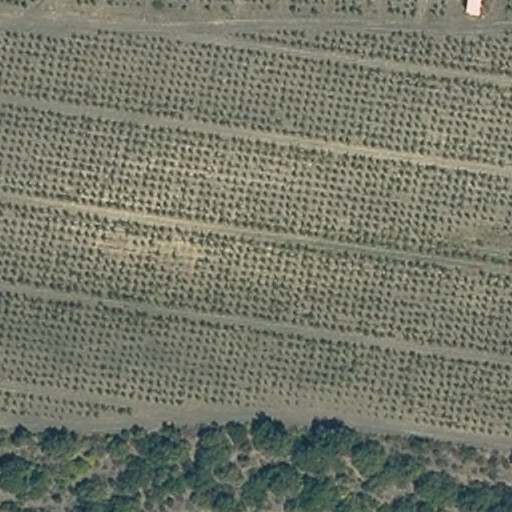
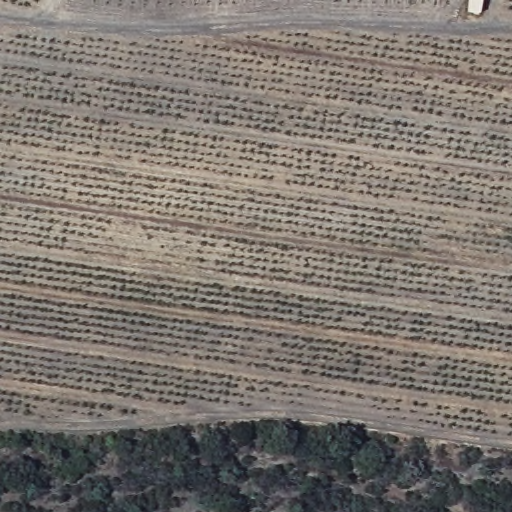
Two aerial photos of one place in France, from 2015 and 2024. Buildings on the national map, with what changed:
unchanged [(470,8),(471,0),(492,0),(489,12),(470,8)]

